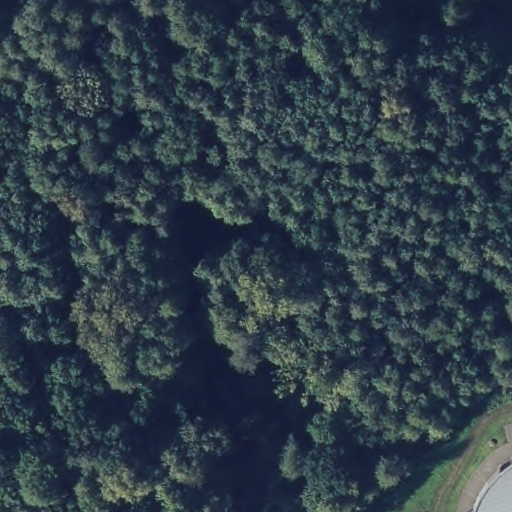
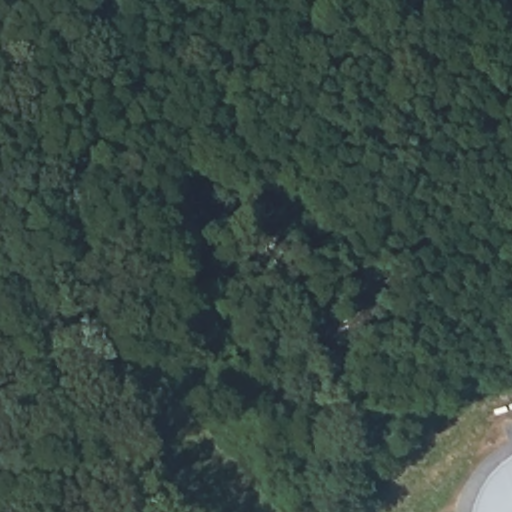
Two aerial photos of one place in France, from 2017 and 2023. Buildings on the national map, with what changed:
unchanged [(471,512),(471,511),(472,510),(472,509),(472,508),(473,508),(473,507),(473,506),(474,506),(474,505),(474,504),(474,503),(474,502),(475,502),(475,501),(476,500),(476,499),(477,498),(477,497),(477,496),(478,496),(478,495),(478,494),(479,494),(479,493),(479,492),(479,491),(480,491),(480,490),(481,490),(481,489),(481,488),(482,488),(482,487),(482,486),(483,486),(483,485),(484,484),(484,483),(484,482),(485,482),(486,481),(486,480),(487,480),(487,479),(488,479),(488,478),(489,477),(489,476),(490,475),(491,474),(492,474),(492,473),(494,471),(495,471),(496,470),(497,469),(498,468),(499,467),(500,466),(501,466),(501,465),(502,465),(503,464),(504,464),(504,463),(506,462),(507,462),(508,461),(509,461),(511,460),(511,459),(512,459),(512,512),(471,512)]

